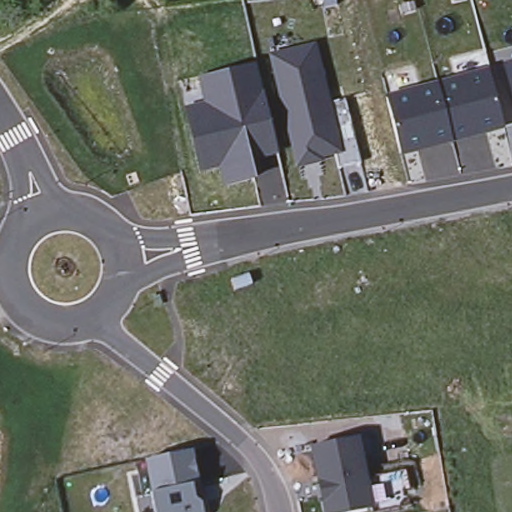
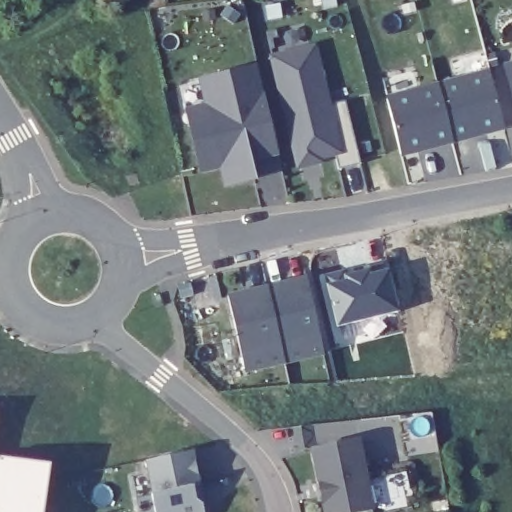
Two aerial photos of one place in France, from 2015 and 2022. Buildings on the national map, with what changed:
unchanged [(332,103),(347,99),(363,166),(340,172),(335,156),(322,167),(297,172),(268,52),(320,41),(332,103)]
unchanged [(512,61),(512,84),(506,63),(512,61)]
unchanged [(277,157),(254,162),(257,179),(223,187),(220,170),(200,174),(187,110),(203,106),(200,77),(259,65),(277,157)]
unchanged [(507,129),(403,155),(389,95),(491,69),(507,129)]
new [(347,280),(346,276),(368,271),(370,274),(389,270),(397,310),(337,326),(327,283),(347,280)]
new [(241,350),(227,295),(308,277),(320,331),(325,354),(246,373),(241,350)]
unchanged [(358,440),(373,509),(360,512),(327,512),(325,504),(328,499),(325,487),(320,484),(313,450),(358,440)]
unchanged [(207,512),(158,512),(148,461),(195,450),(207,512)]
new [(2,459),(49,463),(43,512),(0,512),(0,459),(2,459)]

